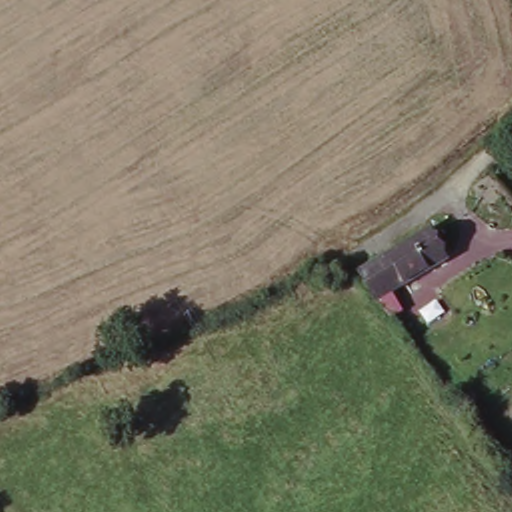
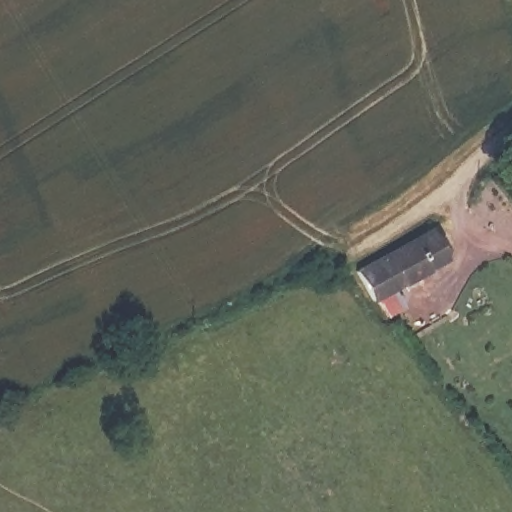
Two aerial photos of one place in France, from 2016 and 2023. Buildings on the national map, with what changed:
unchanged [(385,317),(374,297),(361,269),(437,229),(451,257),(385,292),(396,311),(385,317)]

